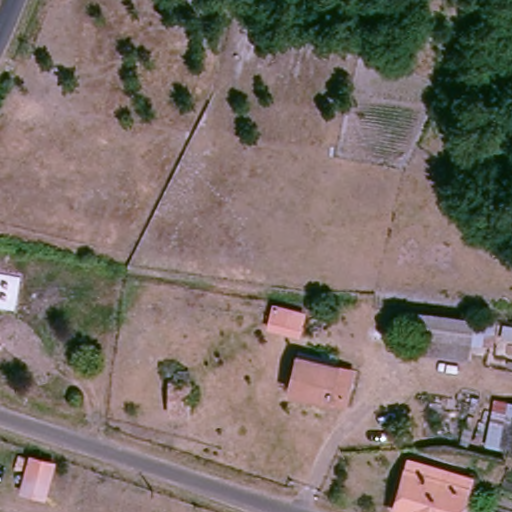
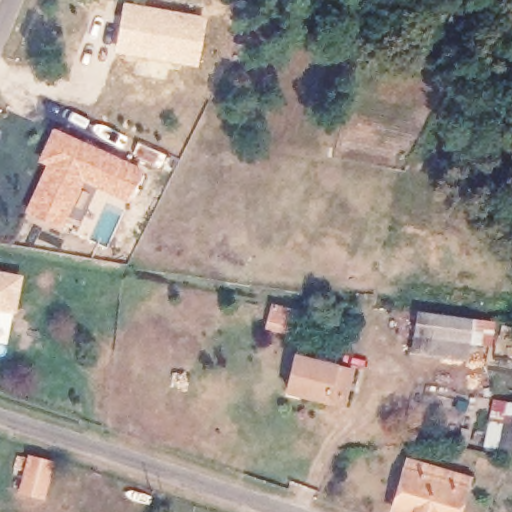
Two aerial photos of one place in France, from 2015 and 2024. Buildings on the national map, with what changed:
new [(122,2),(205,17),(196,66),(113,51),(122,2)]
new [(44,166),(35,161),(52,127),(144,169),(125,204),(96,189),(78,224),(67,219),(61,231),(22,213),(44,166)]
new [(23,276),(17,313),(0,310),(0,271),(23,276)]
unchanged [(307,313),(301,339),(264,329),(272,303),(307,313)]
unchanged [(468,323),(463,358),(414,352),(419,316),(468,323)]
unchanged [(345,377),(337,411),(283,397),(292,365),(345,377)]
unchanged [(187,414),(169,414),(169,373),(187,373),(187,414)]
unchanged [(512,450),(488,445),(496,403),(512,407),(512,450)]
unchanged [(44,498),(21,492),(29,458),(53,465),(44,498)]
unchanged [(454,512),(390,512),(403,467),(462,485),(454,512)]

